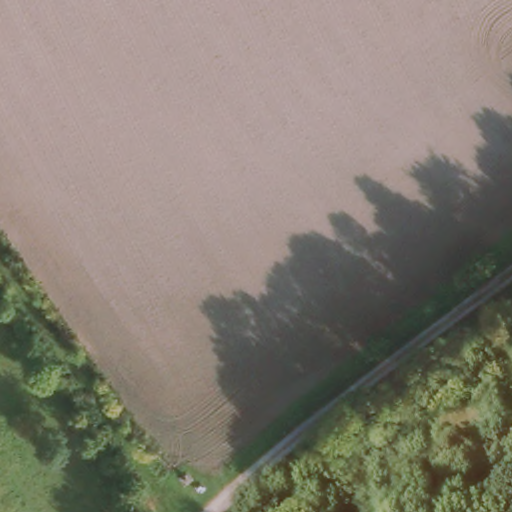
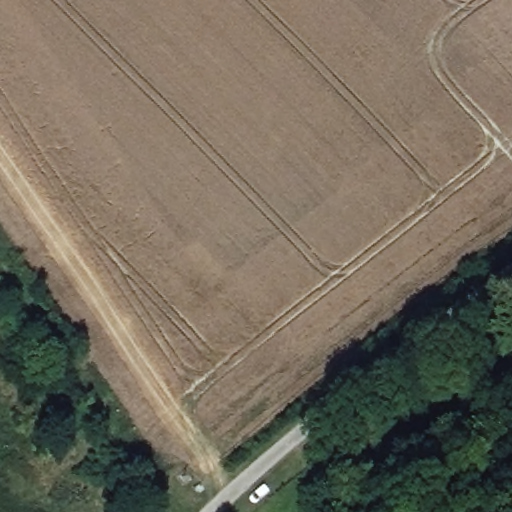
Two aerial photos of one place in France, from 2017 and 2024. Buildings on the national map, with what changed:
unchanged [(278,401),(288,412),(277,420),(268,410),(278,401)]

